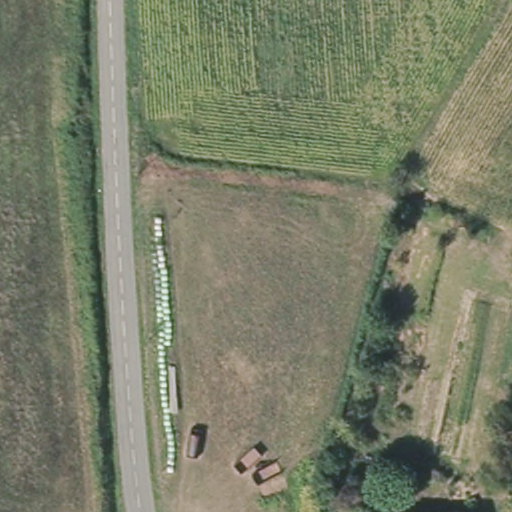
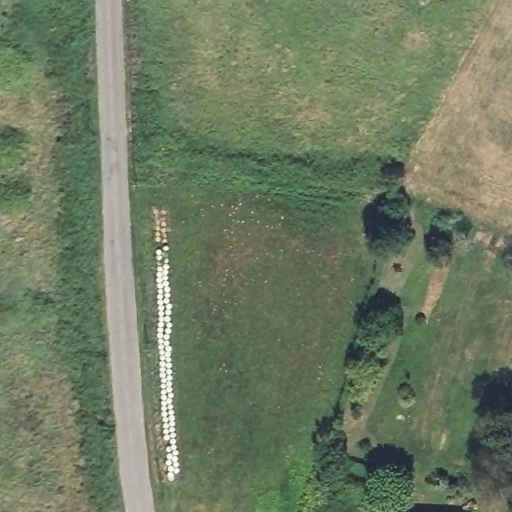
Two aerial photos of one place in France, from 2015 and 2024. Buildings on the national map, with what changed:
unchanged [(347,444),(340,483),(327,479),(335,442),(347,444)]
unchanged [(333,512),(317,512),(320,503),(335,504),(333,512)]
unchanged [(402,512),(379,512),(380,511),(402,512)]

